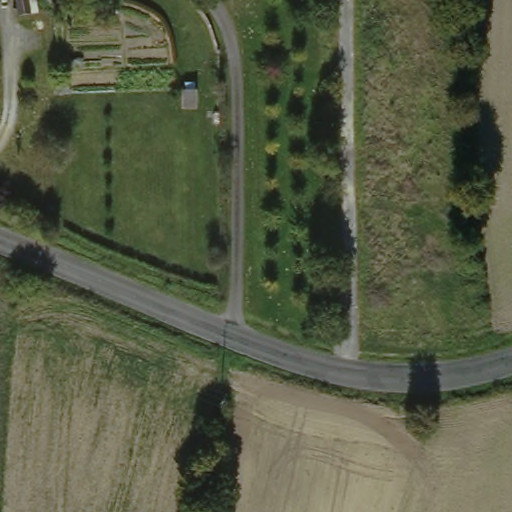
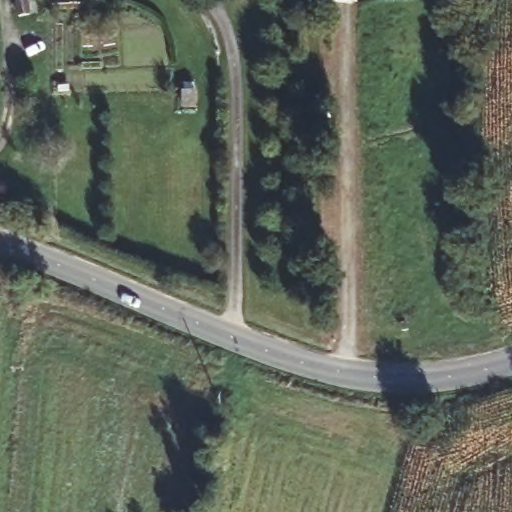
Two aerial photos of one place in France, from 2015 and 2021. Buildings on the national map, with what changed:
unchanged [(8,0),(23,0),(23,2),(9,3),(8,3),(8,0)]

